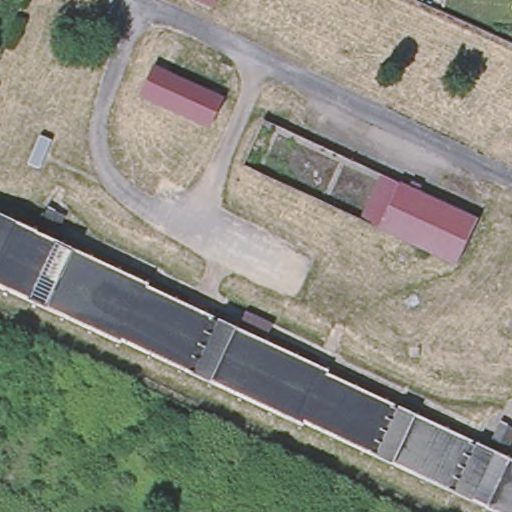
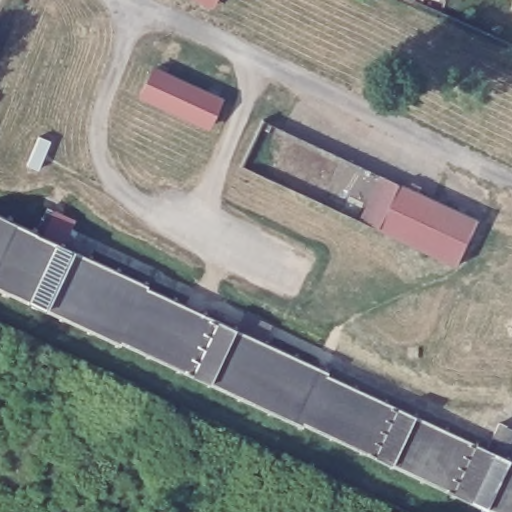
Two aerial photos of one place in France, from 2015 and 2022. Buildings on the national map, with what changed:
unchanged [(210,0),(206,8),(188,0),(210,0)]
unchanged [(139,97),(151,71),(218,102),(206,129),(139,97)]
unchanged [(400,189),(378,236),(359,227),(380,180),(400,189)]
unchanged [(400,189),(478,226),(456,272),(378,236),(400,189)]
unchanged [(305,432),(305,434),(120,349),(120,351),(13,301),(12,302),(0,297),(0,221),(38,239),(49,215),(56,219),(45,242),(150,291),(148,293),(329,377),(328,380),(488,455),(501,428),(508,432),(497,457),(512,465),(512,512),(478,512),(305,432)]

